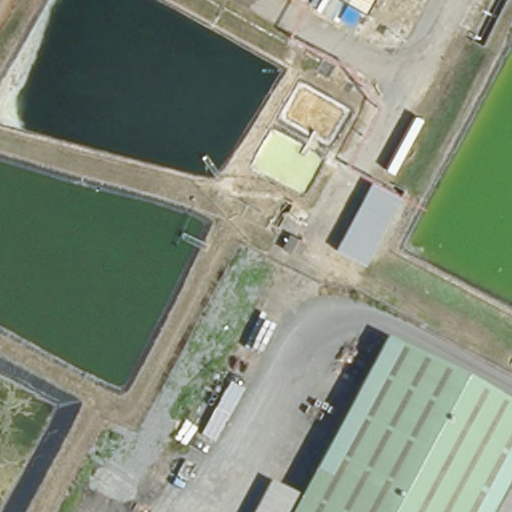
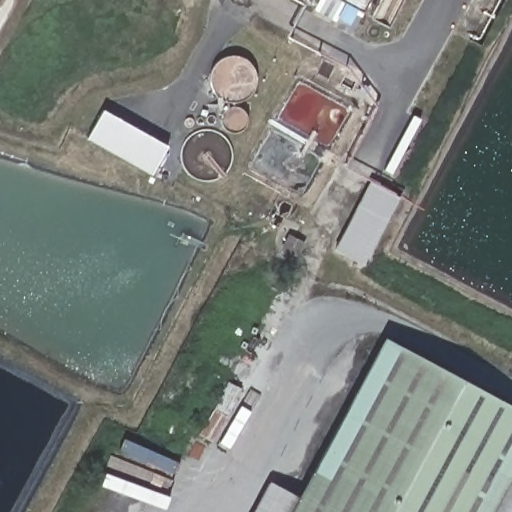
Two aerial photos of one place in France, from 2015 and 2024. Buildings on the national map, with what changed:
unchanged [(363,10),(344,0),(369,0),(363,10)]
new [(86,137),(101,110),(167,147),(151,174),(86,137)]
unchanged [(365,264),(336,248),(370,183),(400,198),(365,264)]
unchanged [(380,339),(512,410),(512,469),(489,512),(287,512),(295,496),(380,339)]
unchanged [(506,512),(489,512),(512,469),(512,501),(506,512)]
unchanged [(247,512),(264,479),(295,496),(287,512),(247,512)]

